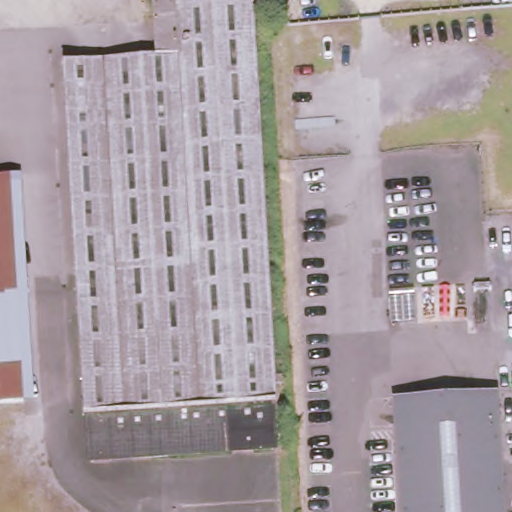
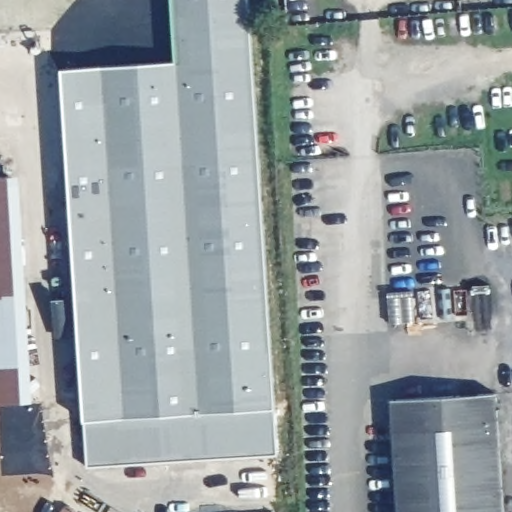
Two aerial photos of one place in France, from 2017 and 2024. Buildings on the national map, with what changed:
unchanged [(65,64),(156,60),(154,0),(251,0),(274,409),(88,417),(82,418),(65,64)]
unchanged [(32,401),(0,402),(0,178),(21,178),(32,401)]
unchanged [(502,393),(509,512),(401,512),(395,397),(502,393)]
unchanged [(277,454),(90,463),(88,417),(274,409),(277,454)]

